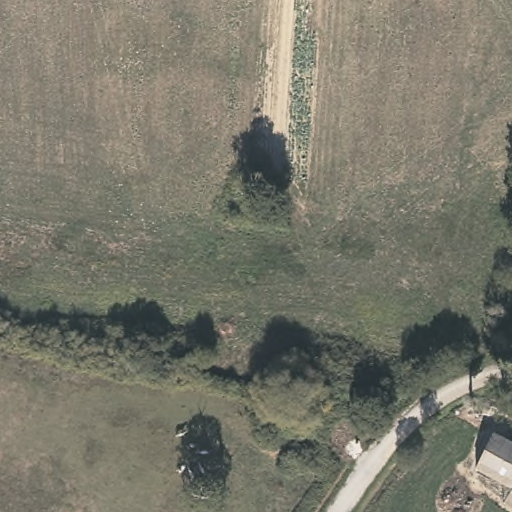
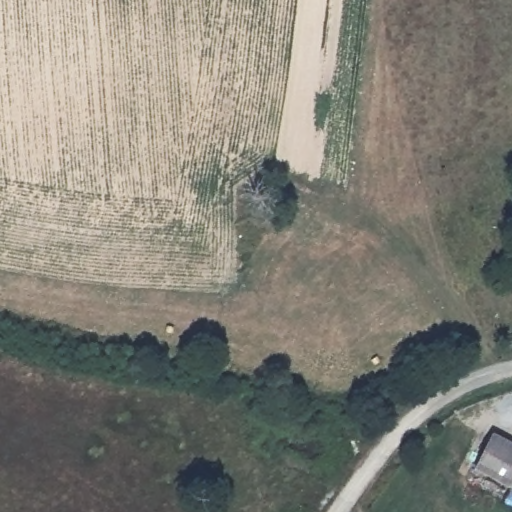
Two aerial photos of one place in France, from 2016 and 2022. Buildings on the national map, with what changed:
unchanged [(512,446),(512,485),(472,465),(488,432),(512,446)]

